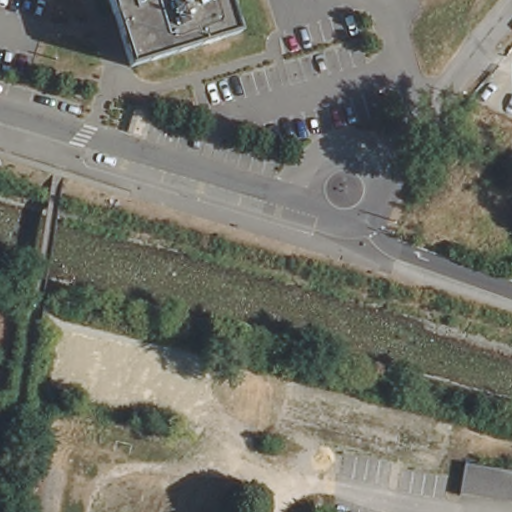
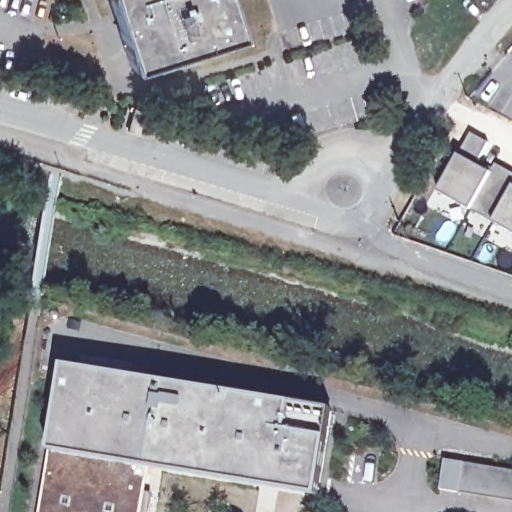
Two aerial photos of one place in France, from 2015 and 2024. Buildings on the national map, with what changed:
unchanged [(230,0),(241,33),(133,66),(116,7),(114,0),(230,0)]
new [(473,135),(489,144),(477,165),(492,173),(498,165),(512,173),(512,233),(497,225),(472,211),(441,192),(459,156),(473,135)]
new [(53,452),(66,367),(333,410),(319,495),(153,467),(144,512),(42,512),(53,452)]
demolished [(449,427),(440,472),(274,435),(284,391),(449,427)]
unchanged [(512,472),(512,503),(459,495),(464,465),(512,472)]
demolished [(153,512),(101,512),(105,480),(158,486),(153,512)]
demolished [(223,512),(178,512),(181,491),(226,497),(223,512)]

